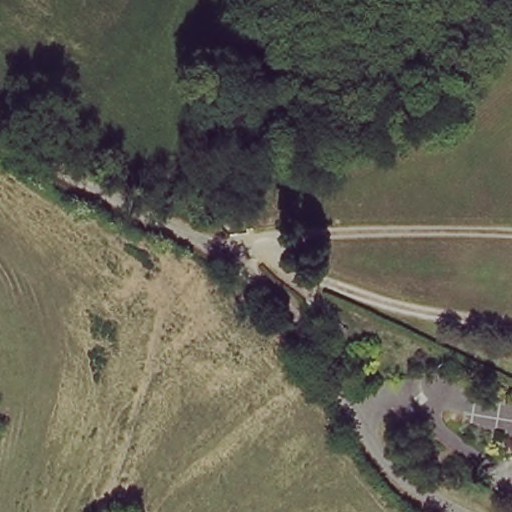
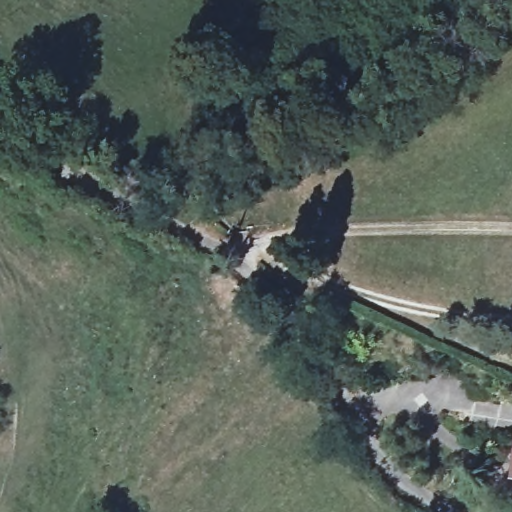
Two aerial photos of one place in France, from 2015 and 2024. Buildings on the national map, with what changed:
unchanged [(512,474),(512,481),(511,481),(512,474)]

